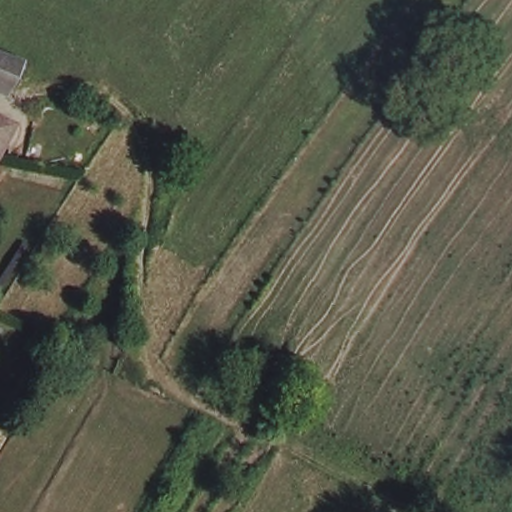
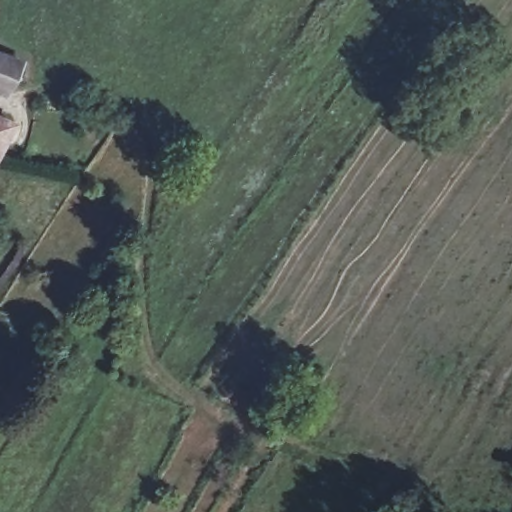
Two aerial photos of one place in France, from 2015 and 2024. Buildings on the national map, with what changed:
unchanged [(0,56),(19,64),(0,89),(0,56)]
unchanged [(2,148),(0,151),(0,109),(20,123),(2,148)]
unchanged [(289,383),(268,413),(241,392),(263,365),(289,383)]

